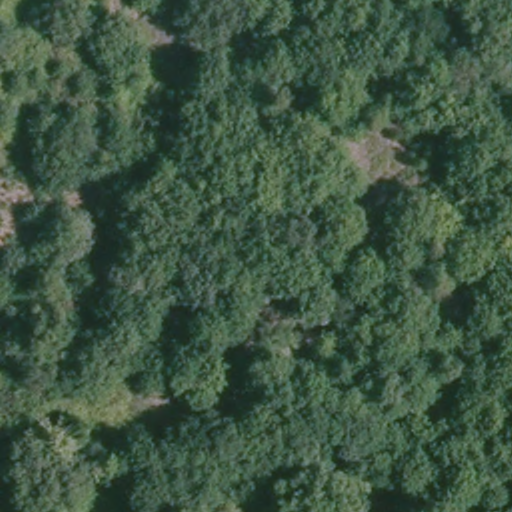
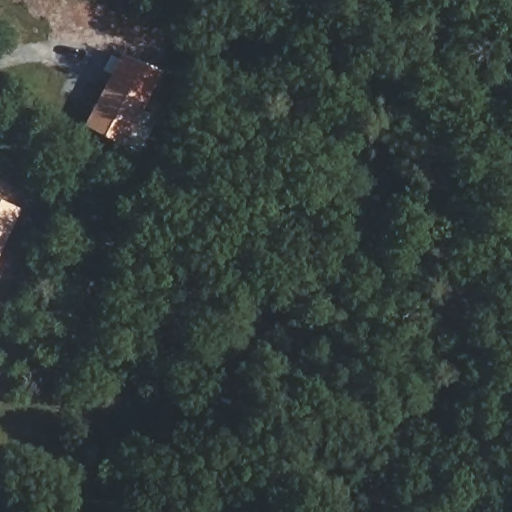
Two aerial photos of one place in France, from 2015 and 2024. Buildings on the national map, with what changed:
new [(85,124),(121,54),(163,75),(124,146),(85,124)]
new [(0,255),(0,199),(21,209),(0,255)]

